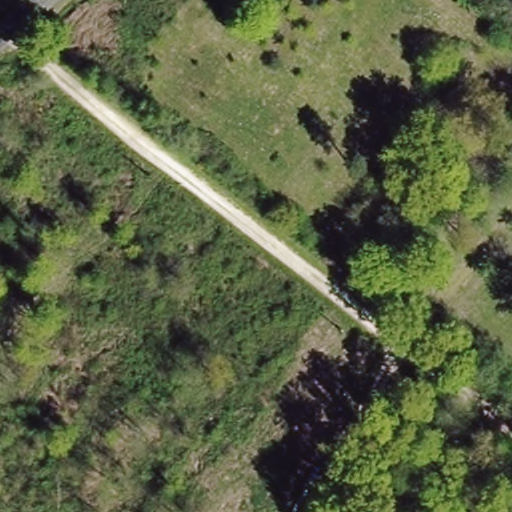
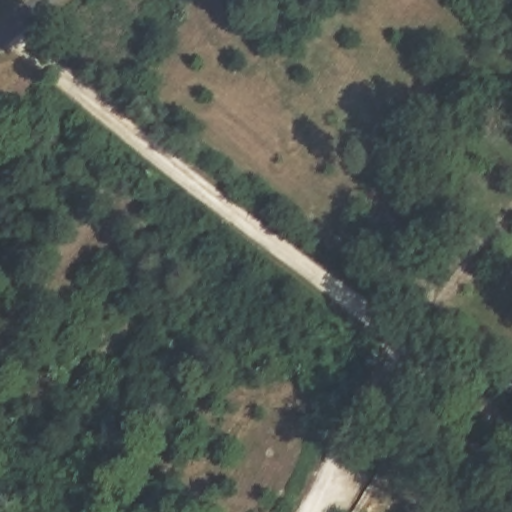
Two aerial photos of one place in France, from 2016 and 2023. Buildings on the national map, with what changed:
[]

